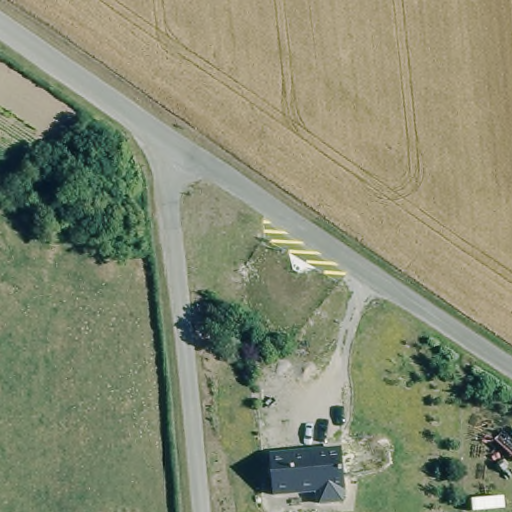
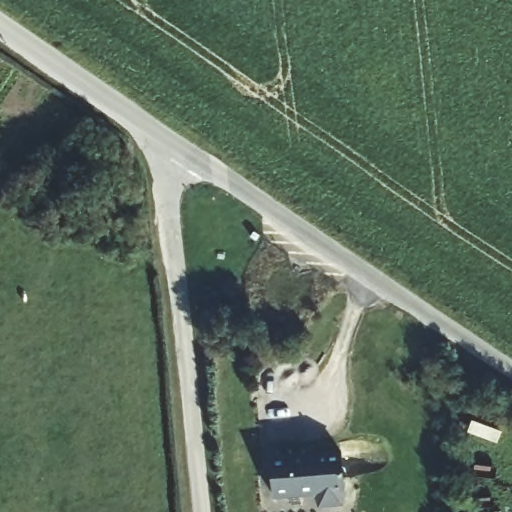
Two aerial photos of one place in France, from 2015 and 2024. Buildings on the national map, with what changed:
unchanged [(340,451),(345,491),(343,505),(320,505),(315,493),(273,498),(270,458),(340,451)]

